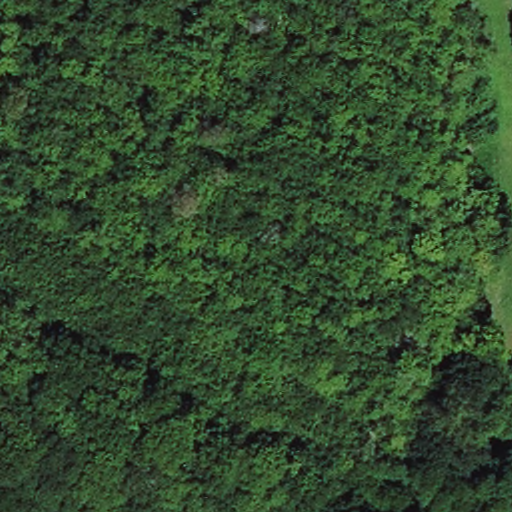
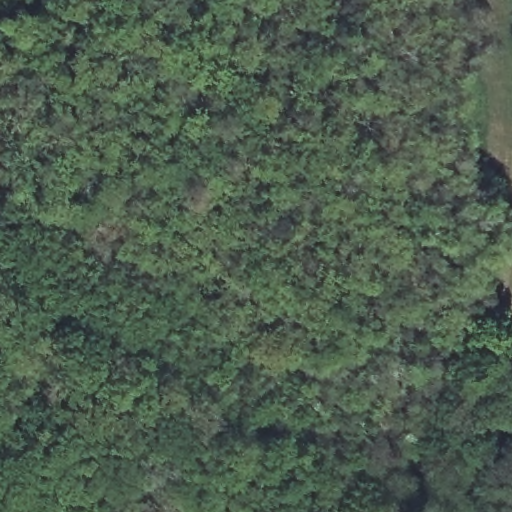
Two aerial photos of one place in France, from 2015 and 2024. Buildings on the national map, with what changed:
[]

